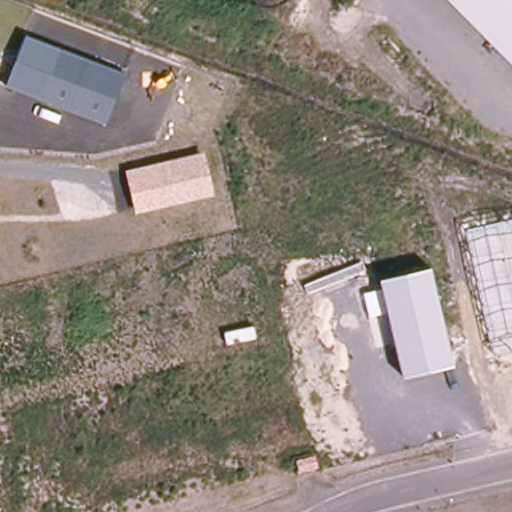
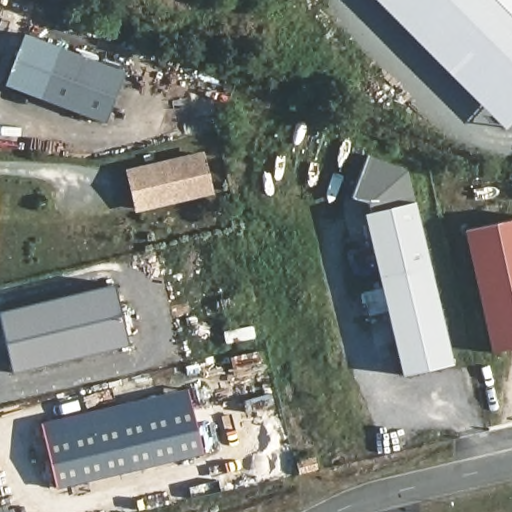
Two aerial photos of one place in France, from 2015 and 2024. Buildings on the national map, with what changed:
new [(505,128),(376,0),(448,0),(512,64),(512,123),(505,128)]
unchanged [(448,0),(512,0),(512,64),(448,0)]
unchanged [(106,123),(5,85),(25,35),(125,72),(106,123)]
unchanged [(135,213),(125,168),(204,151),(214,193),(135,213)]
unchanged [(445,367),(397,376),(381,314),(367,316),(361,293),(373,288),(356,219),(363,210),(360,202),(345,196),(363,155),(400,169),(445,367)]
unchanged [(490,354),(462,230),(512,219),(512,350),(490,354)]
new [(0,321),(0,310),(115,283),(129,344),(12,372),(0,321)]
new [(197,457),(57,490),(42,423),(184,390),(197,457)]

